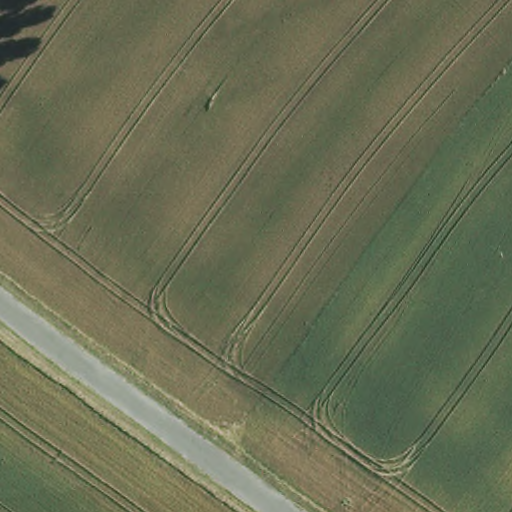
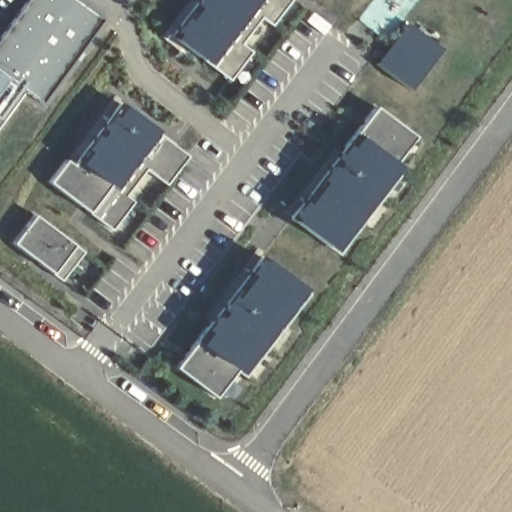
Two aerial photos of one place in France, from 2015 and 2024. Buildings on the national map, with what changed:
new [(23,91),(0,123),(0,37),(27,0),(76,0),(101,20),(40,102),(23,91)]
new [(273,25),(263,17),(244,44),(253,51),(231,81),(205,64),(169,34),(197,0),(292,0),(273,25)]
new [(409,88),(376,62),(407,23),(439,47),(409,88)]
new [(166,184),(146,171),(128,196),(134,201),(113,230),(48,181),(68,157),(73,161),(85,150),(82,148),(96,131),(99,133),(102,128),(99,126),(112,109),(116,113),(124,102),(154,129),(188,156),(166,184)]
new [(394,164),(401,171),(340,250),(333,246),(294,215),(376,106),(414,136),(394,164)]
new [(63,281),(13,243),(35,213),(84,252),(63,281)]
new [(280,312),(286,318),(246,373),(237,365),(214,397),(176,367),(203,330),(201,328),(259,257),(300,287),(280,312)]

